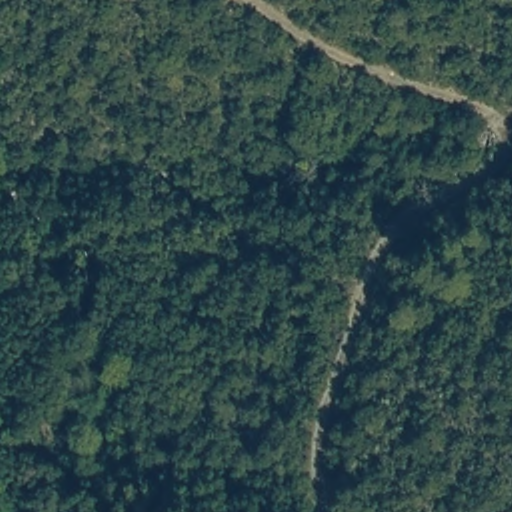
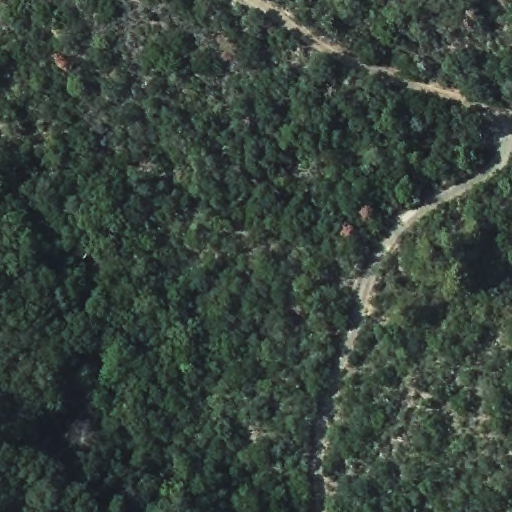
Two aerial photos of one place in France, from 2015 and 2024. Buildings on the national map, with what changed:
[]

